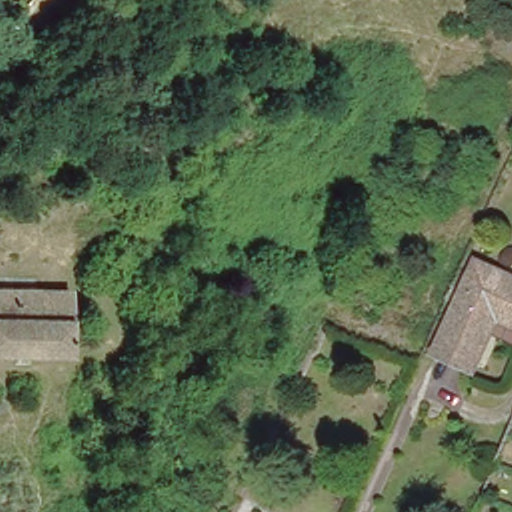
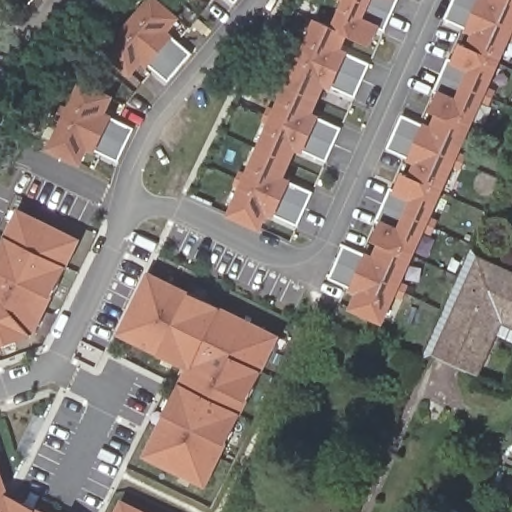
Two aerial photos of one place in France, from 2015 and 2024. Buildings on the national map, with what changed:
new [(107,52),(126,30),(119,24),(127,14),(134,20),(152,0),(156,0),(178,19),(167,32),(193,54),(169,82),(143,60),(132,73),(107,52)]
new [(241,188),(233,184),(238,172),(247,176),(270,124),(262,120),(267,108),(276,112),(299,60),(291,56),(296,44),(305,48),(317,21),(334,29),(346,2),(342,0),(399,0),(385,31),(378,28),(371,45),(347,34),(340,50),(370,64),(355,98),(325,84),(311,114),(342,128),(327,162),(296,148),(282,178),(313,192),(298,226),(267,212),(260,229),(230,215),(241,188)]
new [(236,3),(232,0),(239,0),(236,3)]
new [(383,321),(352,308),(358,293),(328,279),(343,245),(375,258),(389,225),(376,220),(390,186),(404,192),(416,163),(386,150),(402,115),(431,128),(446,95),(435,90),(450,58),(462,63),(474,33),(444,20),(454,0),(512,0),(512,30),(383,321)]
new [(51,149),(63,123),(55,119),(61,107),(69,111),(82,84),(111,98),(104,114),(134,129),(118,162),(88,147),(80,163),(51,149)]
new [(58,284),(54,282),(49,293),(52,294),(33,335),(14,342),(12,338),(1,342),(2,346),(0,347),(0,262),(3,255),(0,254),(0,252),(15,222),(18,223),(23,213),(79,241),(58,284)]
unchanged [(495,325),(478,361),(443,344),(482,256),(512,270),(512,333),(495,325)]
new [(193,295),(191,298),(202,303),(203,300),(278,336),(253,388),(249,386),(244,397),(248,399),(232,431),(228,429),(223,440),(227,441),(206,484),(192,478),(194,474),(183,469),(181,472),(146,456),(168,412),(171,414),(176,404),(173,402),(181,385),(188,388),(197,371),(180,363),(182,359),(172,354),(170,358),(139,343),(141,339),(129,333),(127,337),(120,334),(150,273),(193,295)]
demolished [(66,313),(83,313),(82,329),(66,329),(65,349),(0,348),(0,284),(67,285),(66,313)]
new [(22,502),(20,506),(30,511),(32,507),(41,512),(0,512),(0,472),(8,496),(22,502)]
new [(142,512),(119,512),(123,503),(142,512)]

